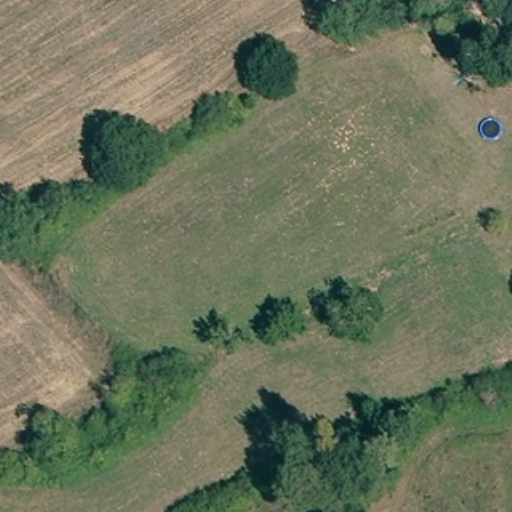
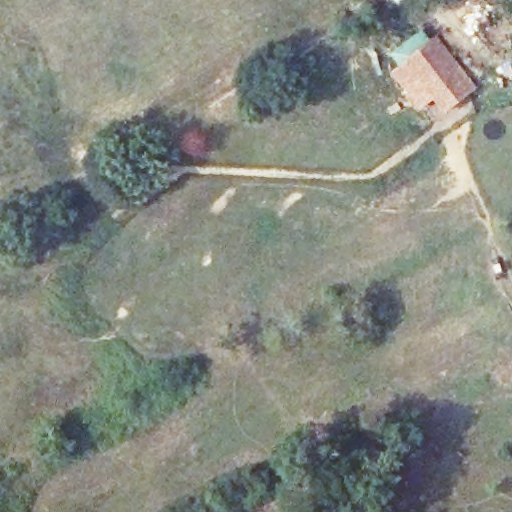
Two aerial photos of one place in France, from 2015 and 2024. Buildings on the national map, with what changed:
new [(436,35),(476,88),(440,115),(402,61),(436,35)]

